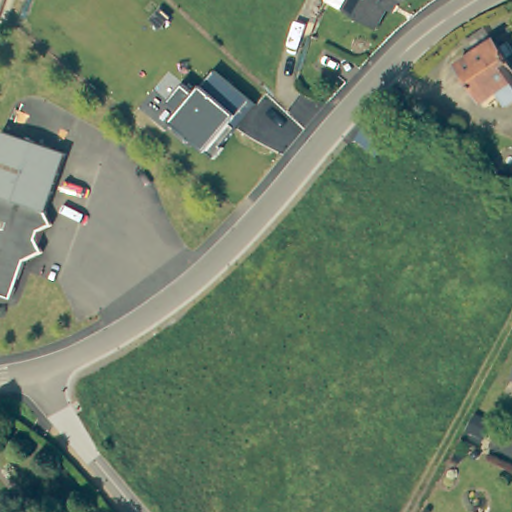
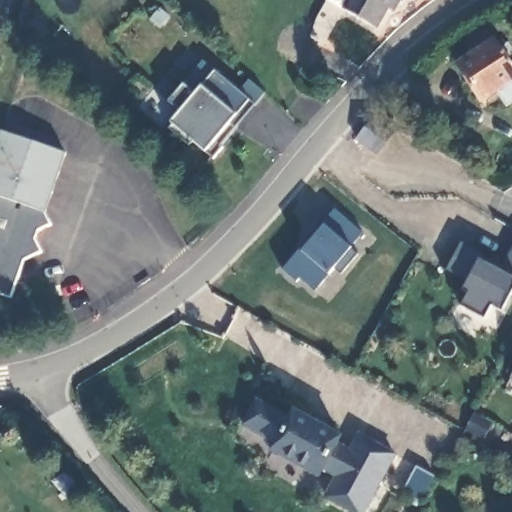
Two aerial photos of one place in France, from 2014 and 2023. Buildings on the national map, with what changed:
unchanged [(389,6),(383,4),(372,26),(323,0),(393,0),(389,6)]
unchanged [(480,100),(453,61),(492,36),(512,67),(512,90),(499,99),(494,91),(480,100)]
unchanged [(169,125),(180,112),(168,101),(182,84),(196,95),(205,86),(214,70),(249,99),(237,115),(215,142),(222,149),(214,159),(169,125)]
unchanged [(418,126),(399,148),(370,132),(387,107),(418,126)]
unchanged [(60,149),(42,209),(49,221),(36,228),(33,236),(40,249),(22,258),(12,293),(0,289),(0,131),(60,149)]
new [(363,232),(353,246),(360,252),(343,273),(336,267),(330,274),(330,275),(316,291),(301,278),(298,281),(285,270),(336,208),(363,232)]
new [(512,249),(512,294),(503,310),(493,305),(486,318),(463,306),(471,292),(465,290),(468,283),(447,272),(462,242),(503,264),(512,249)]
new [(320,477),(269,450),(273,441),(242,427),(257,398),(292,414),(295,409),(343,436),(339,443),(351,448),(360,433),(398,454),(368,512),(351,512),(324,498),(335,476),(324,470),(320,477)]

